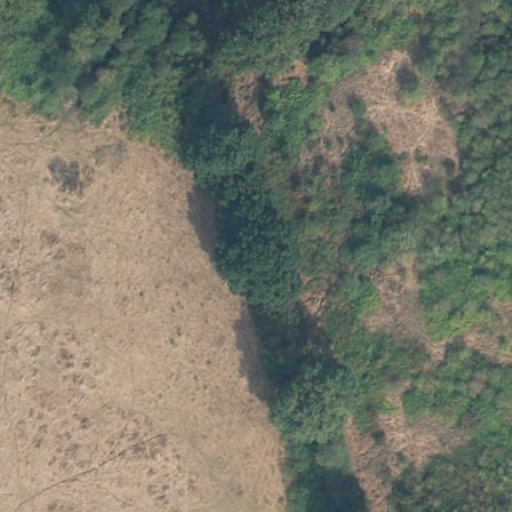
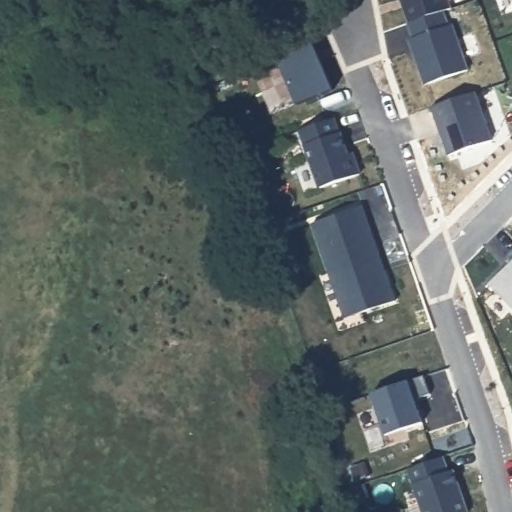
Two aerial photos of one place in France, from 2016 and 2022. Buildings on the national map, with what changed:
new [(443,13),(442,11),(409,22),(401,0),(449,0),(451,8),(443,13)]
new [(442,11),(447,26),(451,24),(467,69),(425,84),(410,39),(414,37),(409,22),(442,11)]
new [(285,17),(303,40),(310,37),(333,85),(298,102),(279,62),(251,75),(237,56),(285,17)]
new [(475,92),(491,140),(448,155),(431,107),(475,92)]
new [(333,118),(338,133),(340,133),(347,154),(351,152),(359,174),(320,187),(300,130),(333,118)]
new [(340,306),(312,224),(362,206),(378,253),(384,270),(395,301),(362,312),(344,318),(340,306)]
new [(512,252),(512,261),(507,257),(512,252)]
new [(512,307),(490,285),(512,263),(512,307)]
new [(423,376),(429,394),(414,400),(421,423),(385,435),(371,394),(423,376)]
new [(446,473),(451,472),(465,512),(422,512),(407,469),(441,458),(446,473)]

